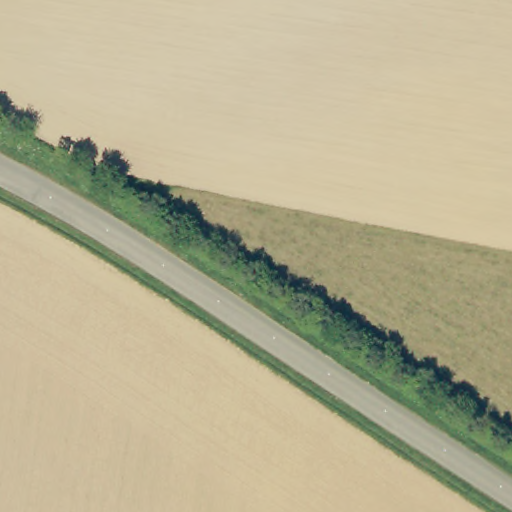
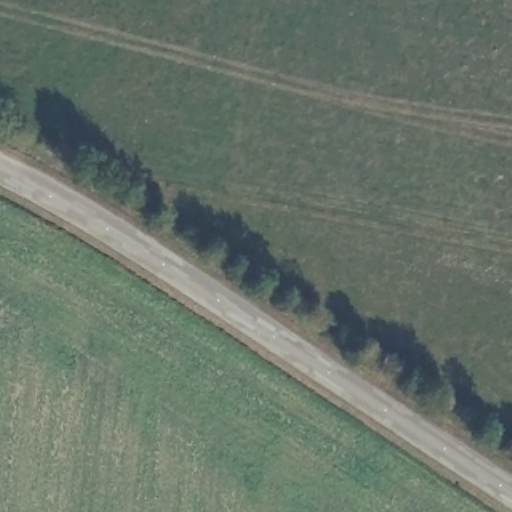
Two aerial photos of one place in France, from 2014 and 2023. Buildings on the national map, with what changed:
[]

